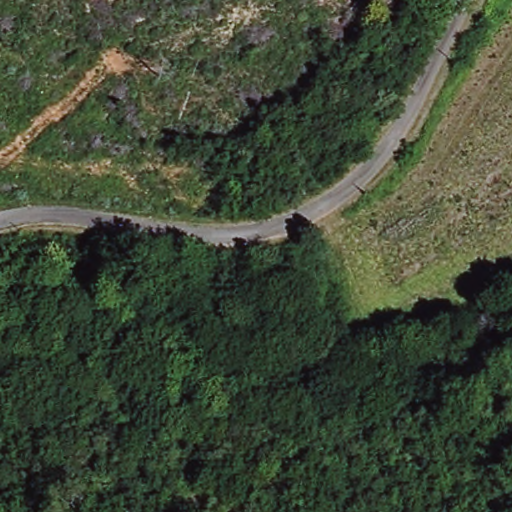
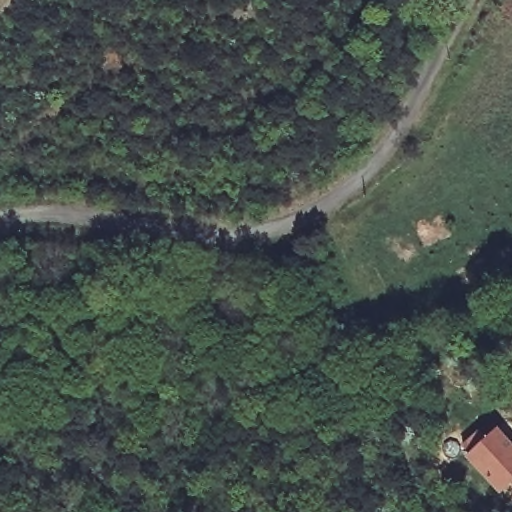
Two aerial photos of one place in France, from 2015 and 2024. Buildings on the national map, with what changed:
new [(476,434),(483,442),(493,433),(510,450),(512,448),(512,479),(496,494),(464,459),(467,457),(459,449),(476,434)]

